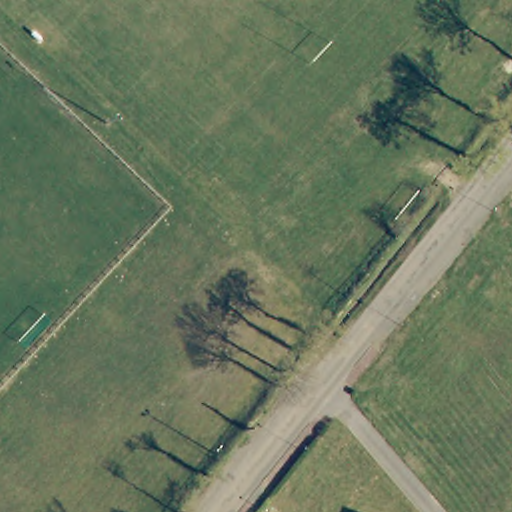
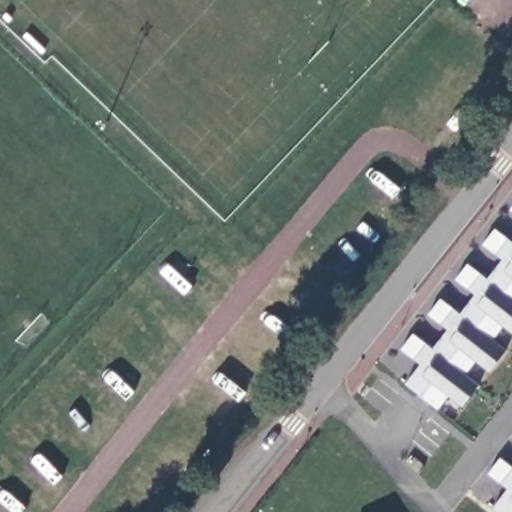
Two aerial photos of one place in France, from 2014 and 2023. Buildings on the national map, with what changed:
new [(512,209),(512,211),(511,210),(512,209)]
new [(433,348),(448,330),(429,315),(443,298),(461,314),(475,295),(457,280),(470,265),(488,278),(502,259),(485,245),(497,229),(512,240),(512,334),(503,328),(494,340),(507,351),(490,373),(476,361),(466,375),(480,386),(463,408),(448,397),(439,410),(406,384),(421,364),(402,350),(415,334),(433,348)]
new [(512,466),(512,512),(499,512),(493,507),(507,488),(489,474),(501,457),(512,466)]

